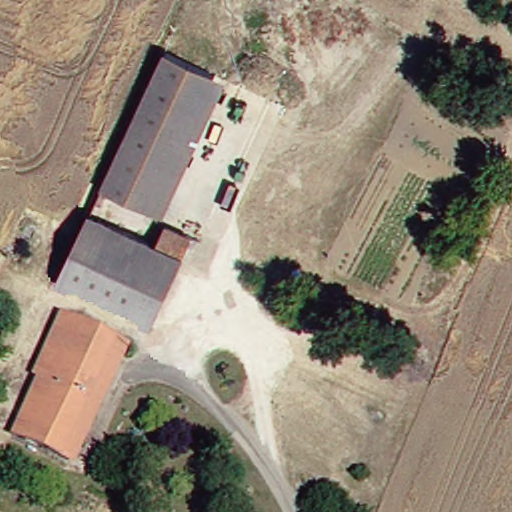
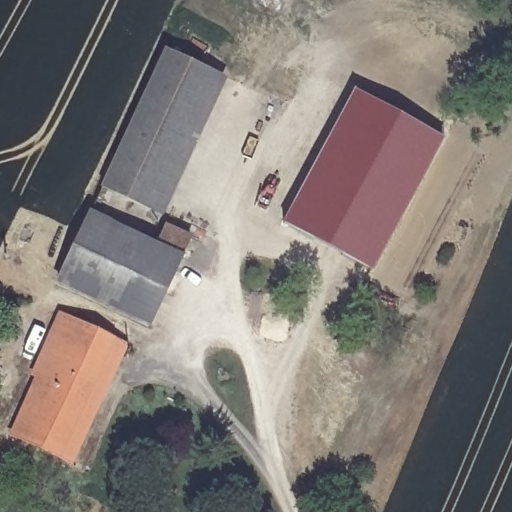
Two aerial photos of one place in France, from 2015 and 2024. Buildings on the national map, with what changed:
unchanged [(150,211),(100,188),(163,52),(212,73),(150,211)]
new [(212,73),(225,81),(162,217),(150,211),(212,73)]
new [(372,272),(281,223),(352,90),(443,139),(372,272)]
unchanged [(50,285),(80,220),(150,249),(157,230),(183,241),(173,261),(143,326),(50,285)]
unchanged [(38,375),(33,372),(57,317),(106,337),(58,456),(14,436),(38,375)]
unchanged [(58,456),(106,337),(123,346),(74,465),(58,456)]

